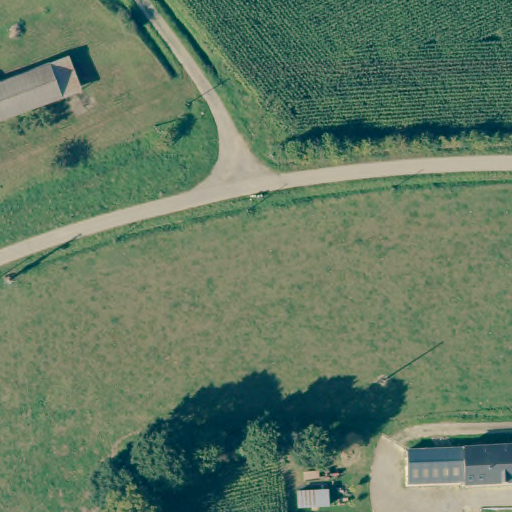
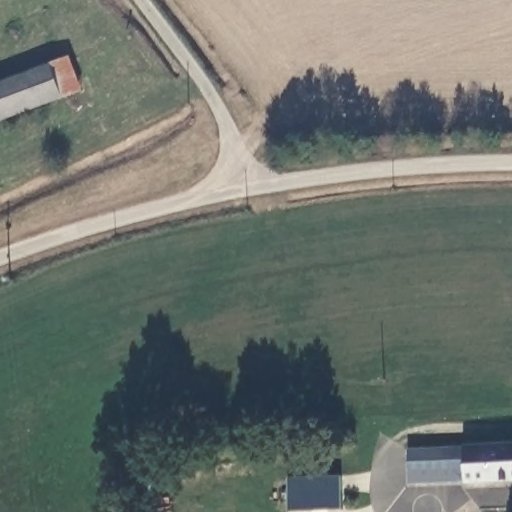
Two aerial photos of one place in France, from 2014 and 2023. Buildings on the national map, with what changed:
unchanged [(47,65),(65,59),(77,89),(59,96),(0,118),(0,83),(47,65)]
unchanged [(484,479),(484,487),(427,485),(428,452),(441,453),(469,455),(485,456),(484,479)]
unchanged [(484,487),(484,479),(485,456),(494,456),(512,456),(512,489),(484,489),(484,487)]
unchanged [(329,510),(297,511),(298,491),(328,490),(329,510)]

